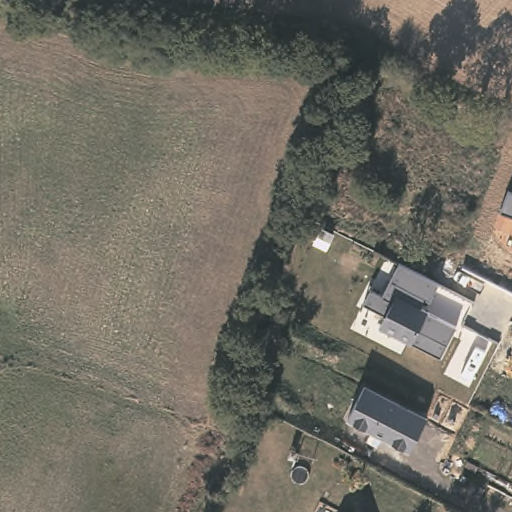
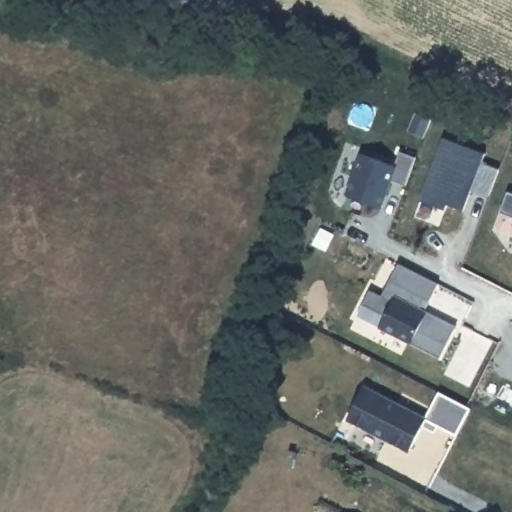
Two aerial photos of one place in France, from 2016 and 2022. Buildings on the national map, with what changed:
new [(488,193),(471,187),(463,207),(446,201),(443,207),(420,198),(443,135),(483,152),(479,161),(497,167),(488,193)]
new [(406,181),(391,176),(381,204),(346,192),(361,151),(393,164),(399,150),(416,156),(406,181)]
unchanged [(507,191),(512,193),(512,215),(501,212),(507,191)]
unchanged [(427,312),(454,327),(440,355),(413,343),(380,327),(386,316),(364,304),(370,291),(383,295),(400,263),(439,283),(431,299),(425,298),(420,309),(427,312)]
unchanged [(426,417),(439,393),(468,406),(456,434),(426,419),(411,450),(348,420),(364,386),(426,417)]
unchanged [(342,512),(337,512),(338,510),(342,512)]

